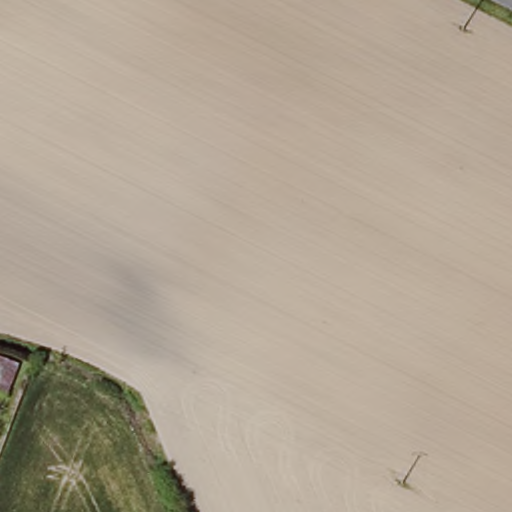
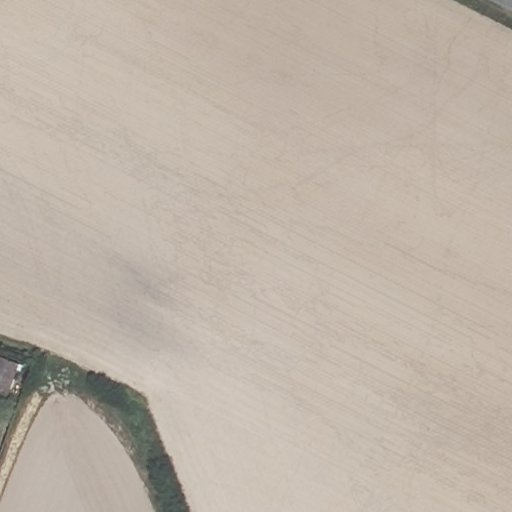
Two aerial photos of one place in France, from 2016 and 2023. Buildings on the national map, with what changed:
unchanged [(8,393),(0,389),(0,353),(21,362),(8,393)]

